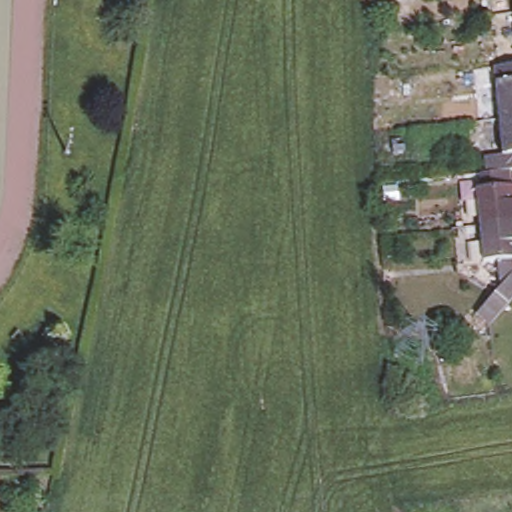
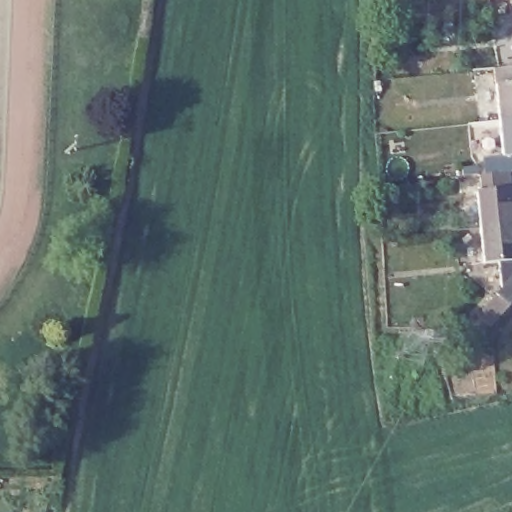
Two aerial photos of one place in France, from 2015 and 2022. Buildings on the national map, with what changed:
unchanged [(511,11),(510,0),(512,0),(512,19),(512,15),(511,11)]
unchanged [(512,116),(496,118),(493,86),(491,70),(512,68),(512,116)]
unchanged [(497,121),(496,118),(512,116),(512,173),(506,174),(504,157),(501,158),(497,121)]
unchanged [(476,230),(473,194),(479,194),(476,177),(506,174),(507,190),(511,190),(512,203),(512,261),(480,265),(476,230)]
unchanged [(511,275),(512,275),(512,301),(490,325),(476,312),(511,275)]

